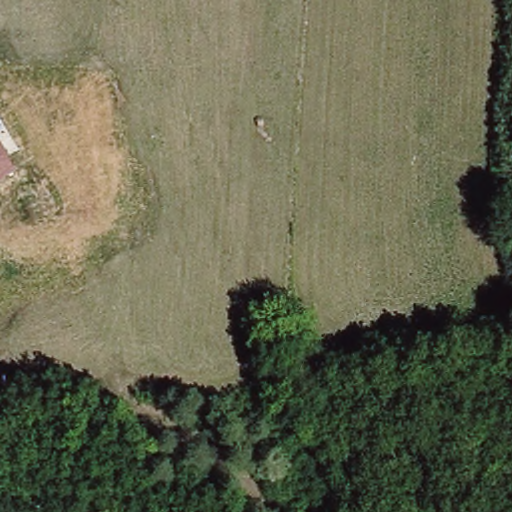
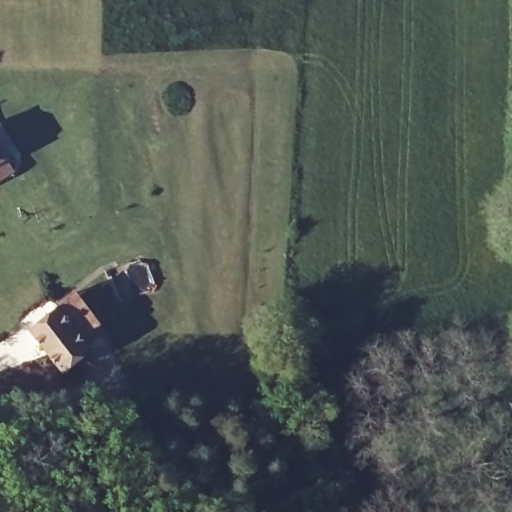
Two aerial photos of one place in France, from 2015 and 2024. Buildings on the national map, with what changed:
unchanged [(0,185),(0,143),(20,172),(0,185)]
new [(62,372),(27,327),(60,303),(76,293),(98,323),(83,332),(95,347),(62,372)]

